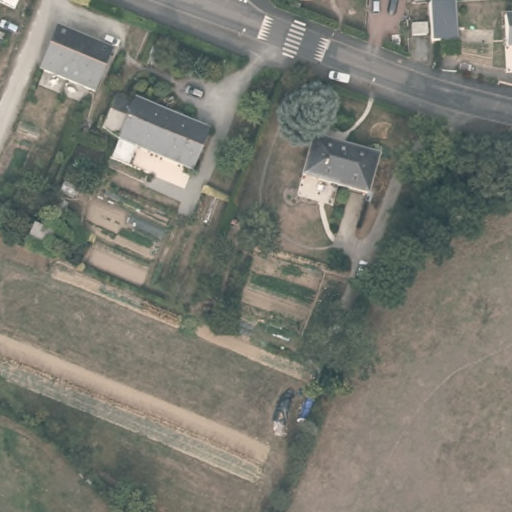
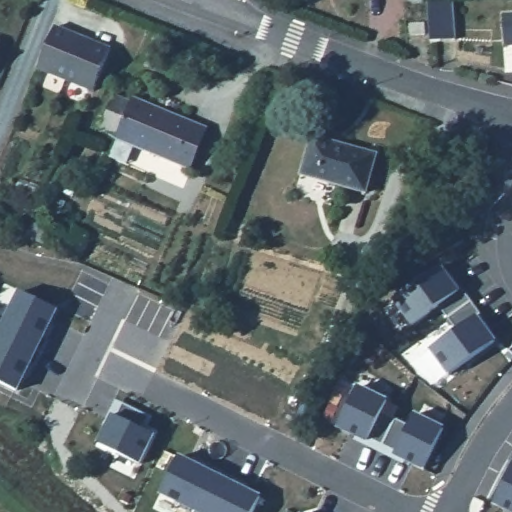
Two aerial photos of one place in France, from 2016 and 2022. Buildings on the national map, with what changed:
unchanged [(425,0),(455,0),(456,40),(427,40),(426,12),(425,0)]
unchanged [(512,24),(512,48),(506,49),(504,24),(512,24)]
unchanged [(88,42),(112,51),(95,93),(70,83),(40,71),(56,29),(88,42)]
unchanged [(112,160),(119,145),(115,143),(116,138),(102,132),(115,101),(132,110),(135,105),(202,136),(186,174),(135,152),(128,168),(112,160)]
unchanged [(301,176),(315,141),(377,167),(362,204),(301,176)]
new [(392,299),(441,265),(496,339),(448,374),(430,349),(456,329),(440,304),(411,325),(392,299)]
new [(0,329),(19,290),(57,310),(17,392),(0,383),(0,329)]
new [(189,328),(213,341),(192,386),(165,373),(189,328)]
new [(357,385),(387,398),(380,411),(409,424),(415,413),(443,427),(423,470),(337,428),(357,385)]
new [(98,444),(118,402),(149,416),(141,429),(154,436),(140,465),(98,444)]
new [(160,495),(179,456),(260,495),(251,512),(196,512),(160,495)]
new [(512,464),(512,512),(511,512),(492,504),(512,464)]

